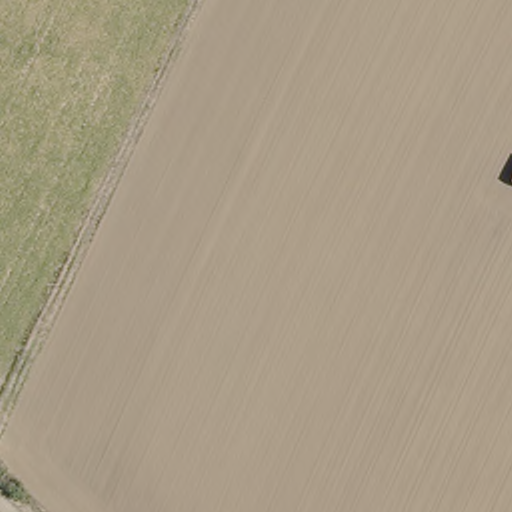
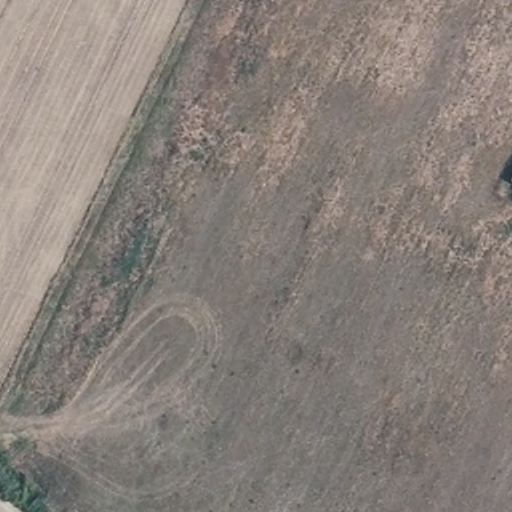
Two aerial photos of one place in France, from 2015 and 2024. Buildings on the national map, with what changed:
unchanged [(512,179),(512,181),(511,180),(512,179)]

